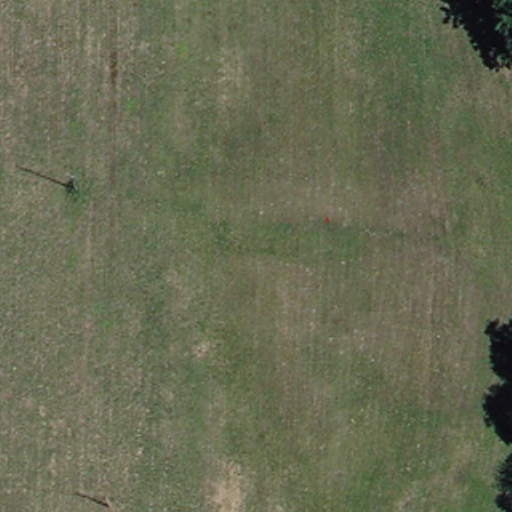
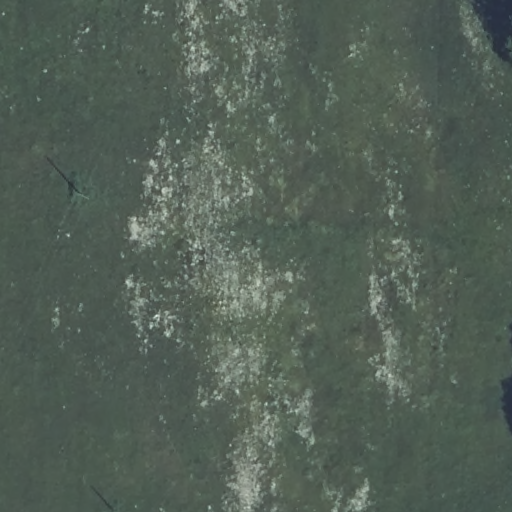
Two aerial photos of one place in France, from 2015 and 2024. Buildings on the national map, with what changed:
[]

